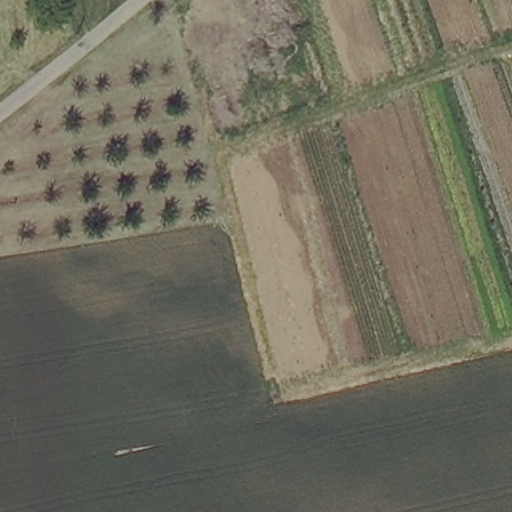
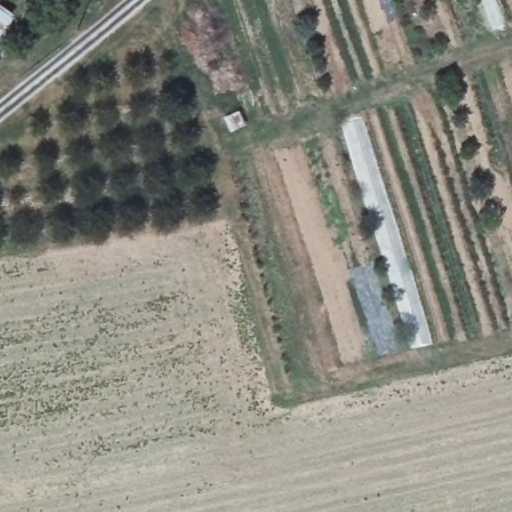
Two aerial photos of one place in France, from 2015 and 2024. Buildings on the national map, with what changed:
[]

